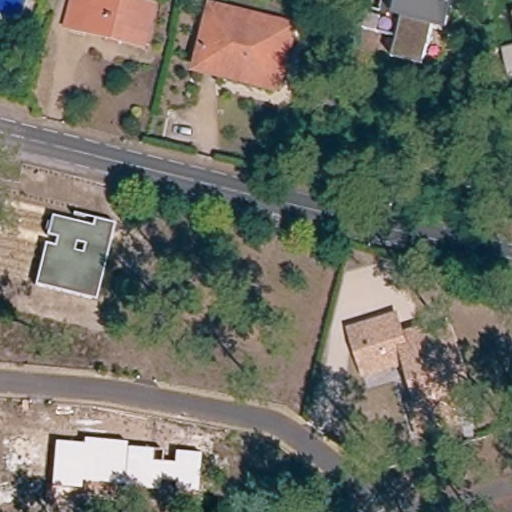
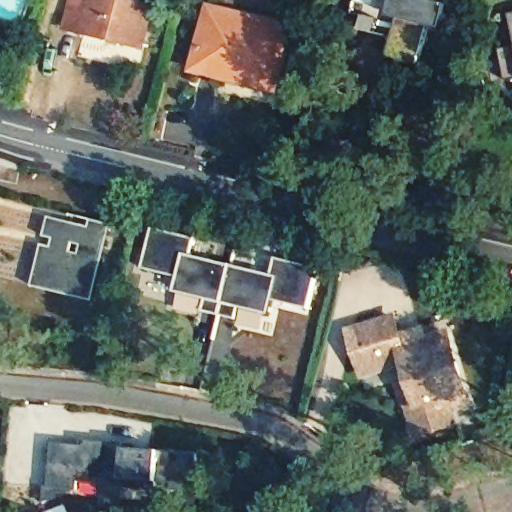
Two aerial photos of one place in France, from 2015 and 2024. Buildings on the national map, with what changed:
unchanged [(152,15),(144,51),(70,33),(78,0),(93,0),(152,15)]
unchanged [(362,29),(368,8),(380,11),(382,0),(406,0),(396,37),(362,29)]
unchanged [(391,58),(395,47),(396,37),(406,0),(438,0),(438,1),(452,5),(446,29),(432,26),(425,55),(422,66),(391,58)]
unchanged [(293,30),(277,91),(197,70),(212,9),(293,30)]
unchanged [(503,50),(512,49),(512,82),(510,82),(503,50)]
unchanged [(114,223),(96,299),(35,285),(44,244),(55,246),(57,237),(47,235),(51,215),(92,226),(94,218),(114,223)]
new [(241,307),(239,319),(205,311),(209,299),(178,291),(180,277),(146,269),(155,228),(197,238),(193,255),(272,275),(278,258),(321,269),(311,307),(275,299),(271,315),(241,307)]
unchanged [(355,327),(397,314),(403,334),(425,327),(427,337),(450,331),(454,342),(471,398),(451,404),(456,418),(420,429),(413,404),(422,401),(409,357),(386,364),(367,370),(355,327)]
unchanged [(84,444),(84,438),(126,443),(126,447),(151,449),(151,461),(174,463),(175,452),(200,453),(199,491),(81,481),(80,489),(51,485),(55,441),(84,444)]

